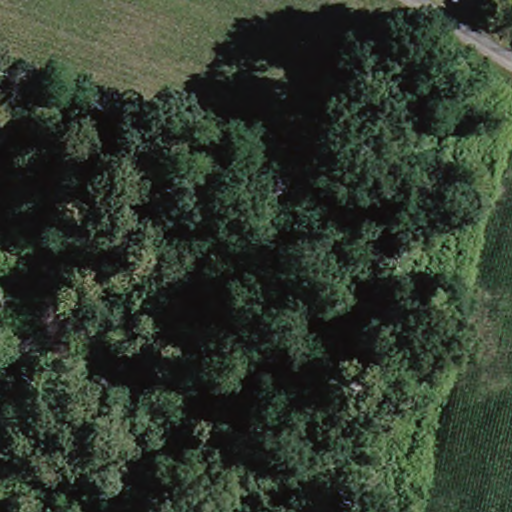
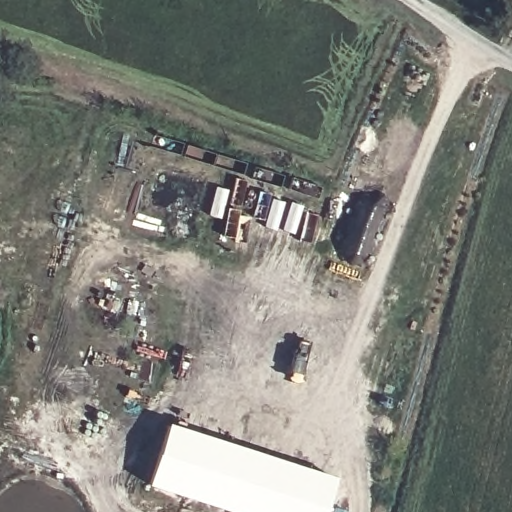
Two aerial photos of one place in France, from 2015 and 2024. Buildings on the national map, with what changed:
new [(225,512),(145,487),(165,424),(335,478),(324,512),(225,512)]

